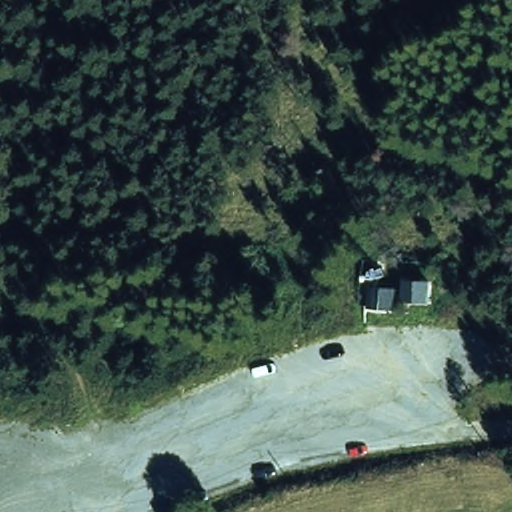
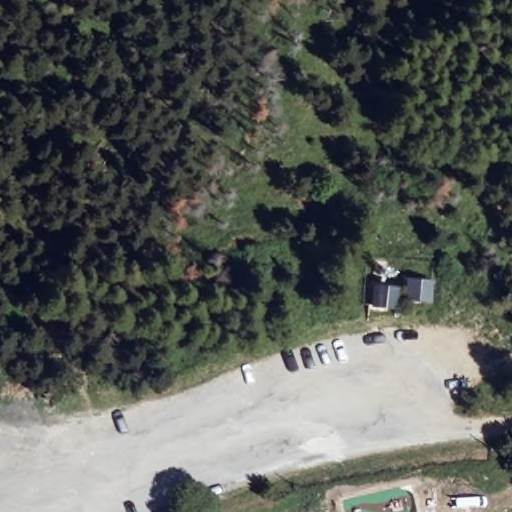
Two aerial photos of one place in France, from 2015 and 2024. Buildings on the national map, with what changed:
unchanged [(430,277),(430,302),(402,301),(402,276),(430,277)]
unchanged [(395,285),(395,309),(366,308),(367,285),(395,285)]

